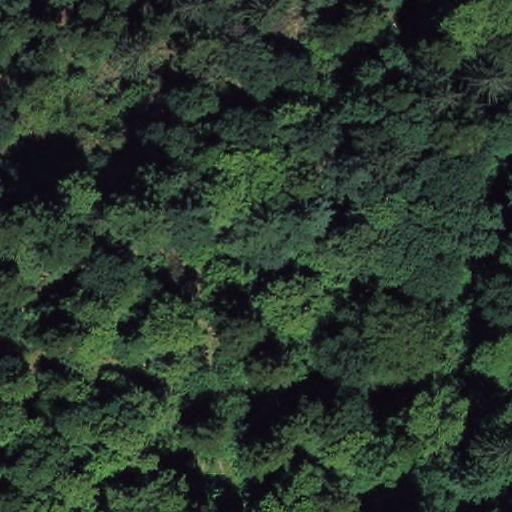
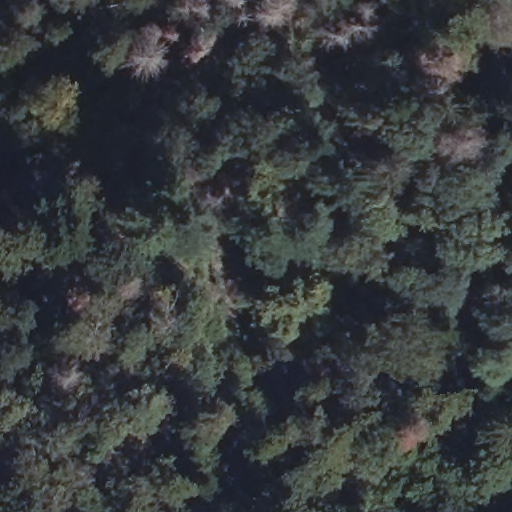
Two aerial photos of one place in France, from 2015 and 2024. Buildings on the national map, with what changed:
unchanged [(135,405),(151,462),(128,463),(108,412),(135,405)]
unchanged [(158,512),(139,512),(137,505),(155,503),(158,512)]

